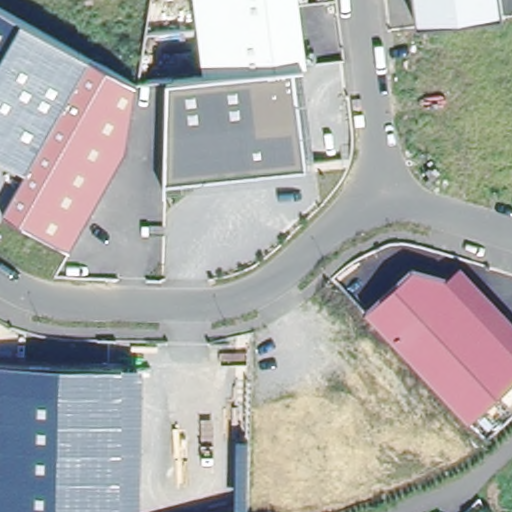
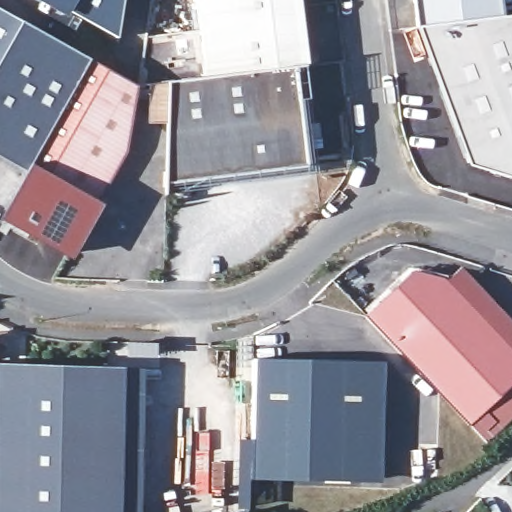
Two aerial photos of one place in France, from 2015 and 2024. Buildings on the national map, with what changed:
new [(39,0),(122,0),(116,36),(66,15),(39,0)]
unchanged [(294,66),(239,73),(216,76),(202,78),(192,0),(290,0),(298,65),(294,66)]
unchanged [(488,18),(419,27),(416,0),(502,0),(504,16),(488,18)]
unchanged [(30,173),(0,157),(0,8),(92,60),(30,173)]
new [(470,164),(419,27),(488,18),(504,16),(512,16),(512,178),(470,164)]
unchanged [(140,86),(130,152),(74,253),(6,216),(30,173),(92,60),(140,86)]
unchanged [(165,82),(202,78),(216,76),(239,73),(294,66),(306,166),(163,184),(165,82)]
unchanged [(512,323),(512,385),(467,426),(365,317),(412,271),(446,280),(461,266),(512,323)]
new [(251,480),(255,359),(385,362),(381,483),(251,480)]
unchanged [(124,512),(0,512),(0,363),(127,366),(124,512)]
new [(471,422),(512,385),(512,420),(486,445),(471,422)]
unchanged [(248,510),(249,512),(240,512),(248,510)]

